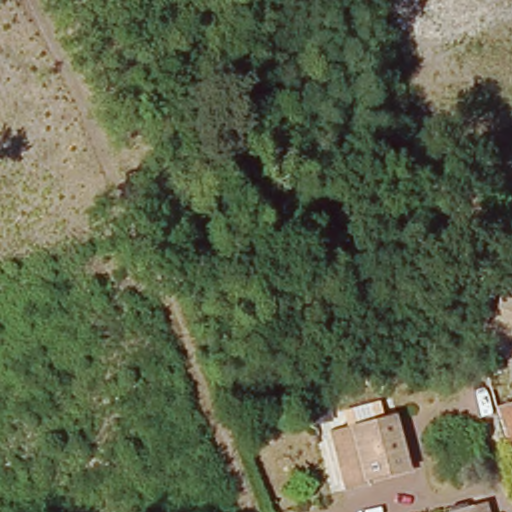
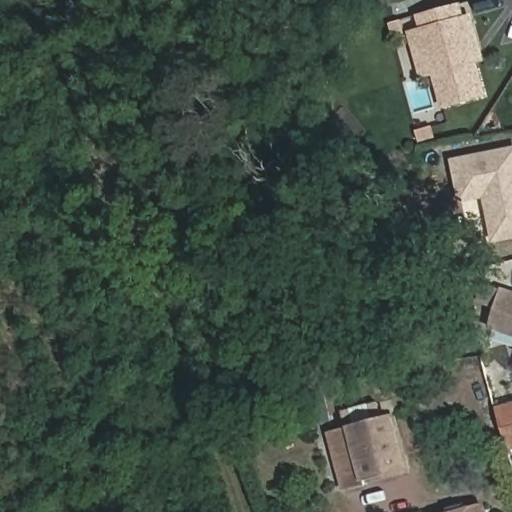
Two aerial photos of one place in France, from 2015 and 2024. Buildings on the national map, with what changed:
new [(478,62),(488,96),(441,108),(432,76),(421,79),(407,31),(420,27),(416,16),(462,2),(466,15),(473,12),(486,60),(478,62)]
new [(485,197),(460,202),(451,161),(512,149),(512,238),(493,242),(485,197)]
unchanged [(503,287),(512,290),(512,337),(490,331),(503,287)]
unchanged [(512,453),(501,416),(512,413),(512,453)]
unchanged [(338,427),(407,415),(408,425),(416,469),(413,470),(370,477),(371,488),(352,492),(341,440),(338,427)]

